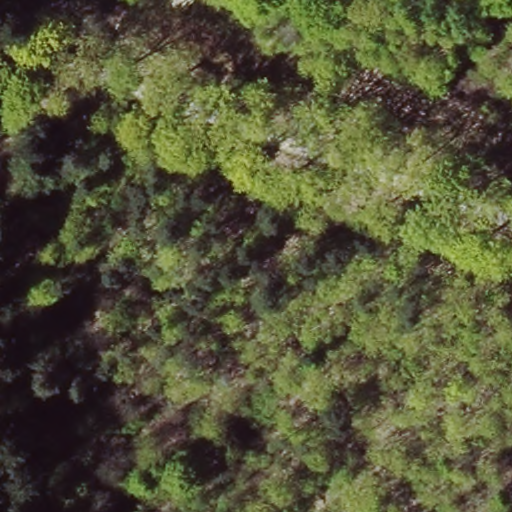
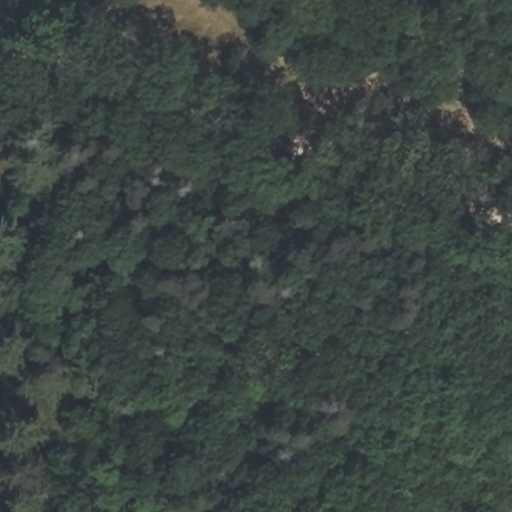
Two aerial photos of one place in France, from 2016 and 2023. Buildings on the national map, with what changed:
[]

